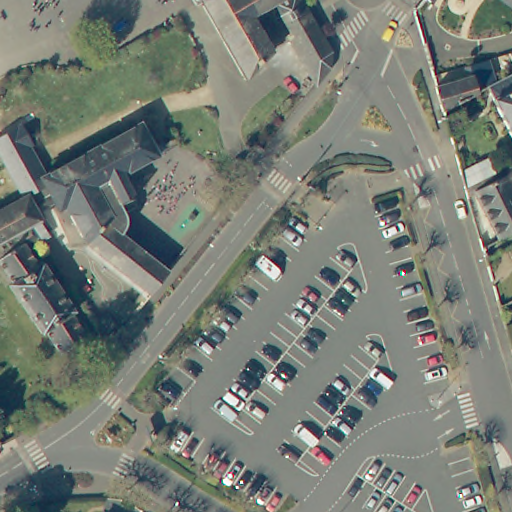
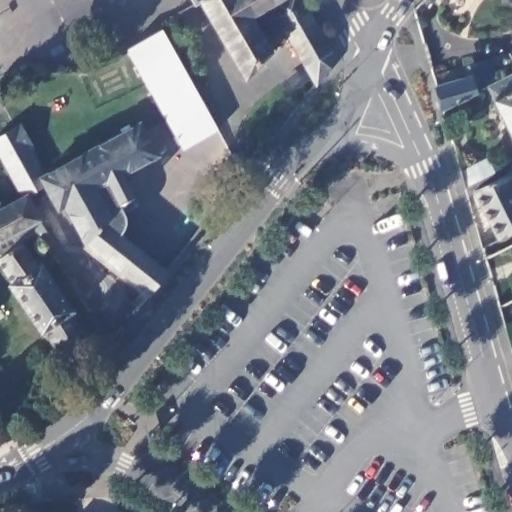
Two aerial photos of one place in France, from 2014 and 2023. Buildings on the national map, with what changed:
unchanged [(199,6),(196,0),(206,0),(205,1),(206,2),(199,6)]
unchanged [(284,5),(261,18),(280,50),(249,79),(206,2),(205,1),(206,0),(307,0),(335,49),(334,67),(321,84),(281,15),(284,5)]
new [(218,130),(184,150),(126,49),(161,29),(218,130)]
unchanged [(509,52),(507,50),(512,47),(512,59),(509,52)]
unchanged [(486,85),(512,71),(512,131),(486,85)]
unchanged [(439,84),(475,74),(480,90),(446,108),(439,84)]
unchanged [(109,215),(94,187),(70,200),(61,205),(49,185),(44,175),(141,121),(161,153),(124,174),(139,204),(126,211),(126,219),(123,227),(109,215)]
unchanged [(0,135),(17,125),(44,175),(49,185),(61,205),(45,215),(34,193),(33,192),(24,197),(0,157),(0,135)]
unchanged [(506,173),(503,167),(512,163),(512,231),(497,239),(474,189),(466,193),(464,186),(459,170),(488,155),(496,171),(483,177),(486,182),(506,173)]
unchanged [(152,290),(93,237),(70,200),(94,187),(109,215),(123,227),(171,267),(152,290)]
unchanged [(0,240),(0,211),(33,192),(34,193),(45,215),(35,220),(0,240)]
unchanged [(64,348),(48,323),(44,326),(13,278),(16,275),(1,251),(26,236),(41,260),(46,257),(76,305),(73,307),(88,332),(64,348)]
demolished [(112,340),(79,288),(94,278),(124,326),(112,340)]
unchanged [(39,512),(0,512),(0,506),(39,511),(39,512)]

